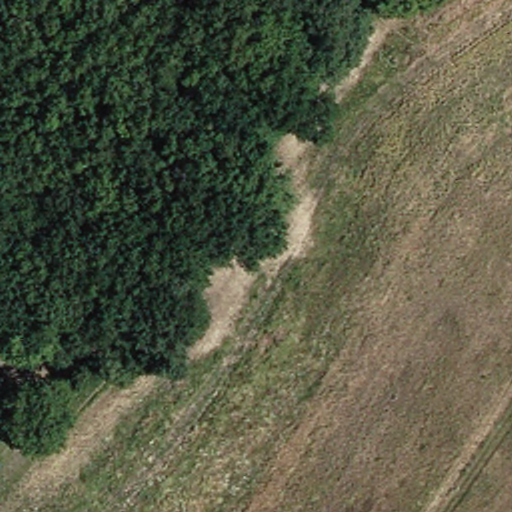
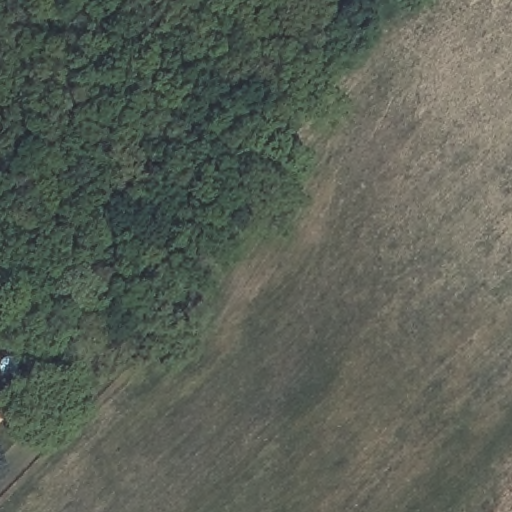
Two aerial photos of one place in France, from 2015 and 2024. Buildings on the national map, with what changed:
unchanged [(17,181),(34,197),(21,212),(3,195),(17,181)]

